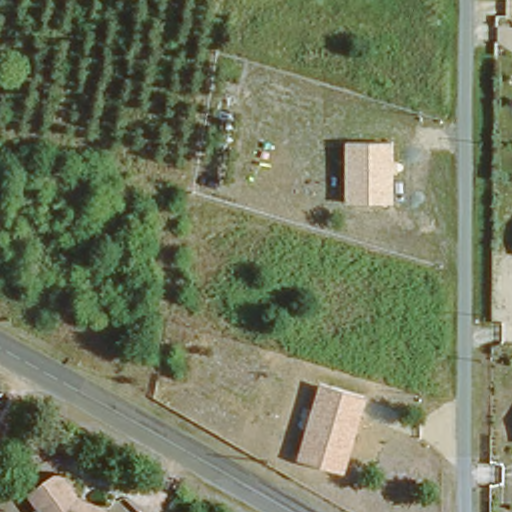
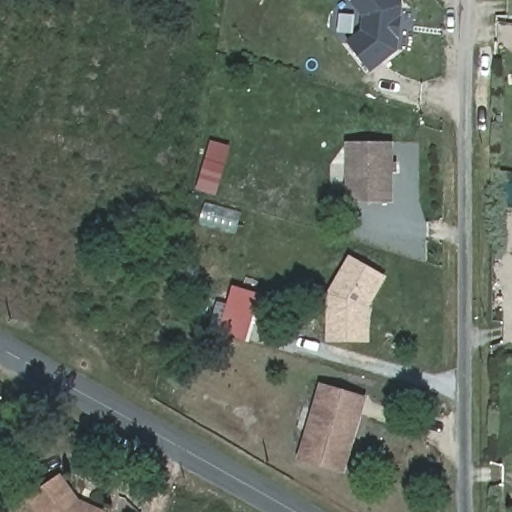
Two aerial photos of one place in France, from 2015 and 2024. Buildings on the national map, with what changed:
new [(400,0),(402,3),(398,51),(366,72),(347,42),(358,32),(361,15),(350,3),(355,0),(400,0)]
unchanged [(394,203),(347,203),(348,140),(395,140),(394,203)]
new [(387,277),(367,308),(369,344),(325,344),(326,299),(347,258),(387,277)]
new [(246,345),(216,337),(231,287),(258,296),(246,345)]
unchanged [(346,473),(299,459),(322,383),(370,398),(346,473)]
unchanged [(34,498),(64,477),(82,503),(106,512),(43,512),(34,498)]

